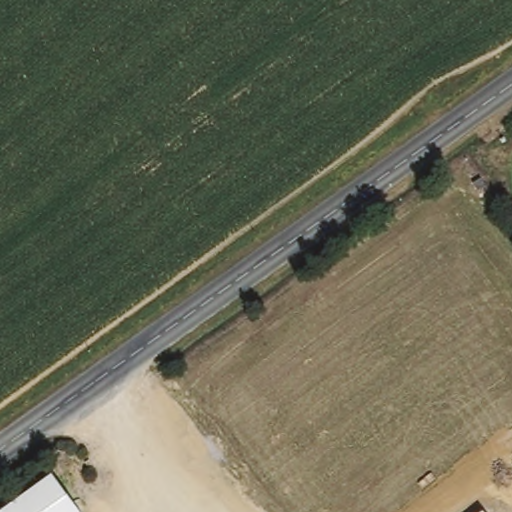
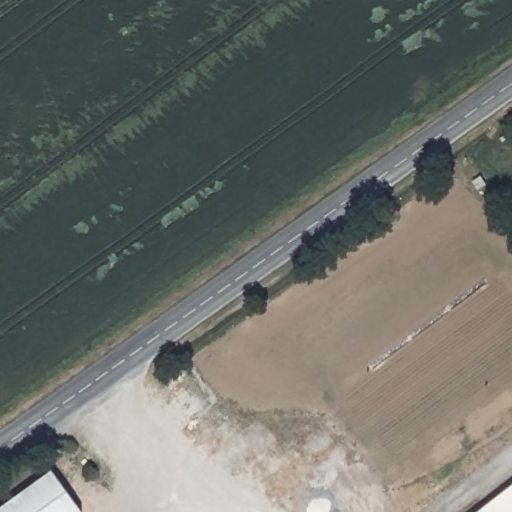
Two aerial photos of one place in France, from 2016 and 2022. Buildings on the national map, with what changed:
unchanged [(52,476),(78,512),(1,512),(52,476)]
new [(512,488),(512,512),(484,512),(482,511),(512,488)]
unchanged [(482,511),(484,512),(481,512),(482,511)]

